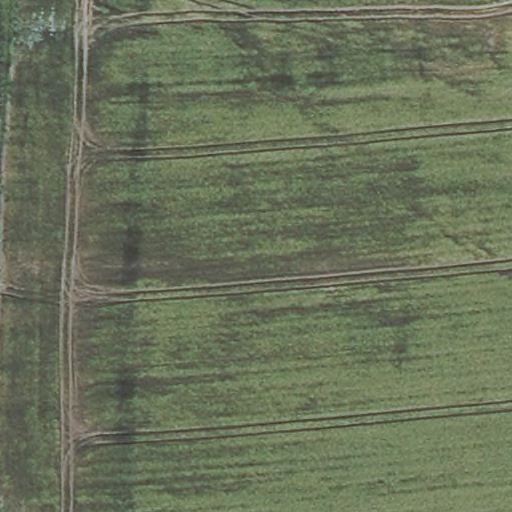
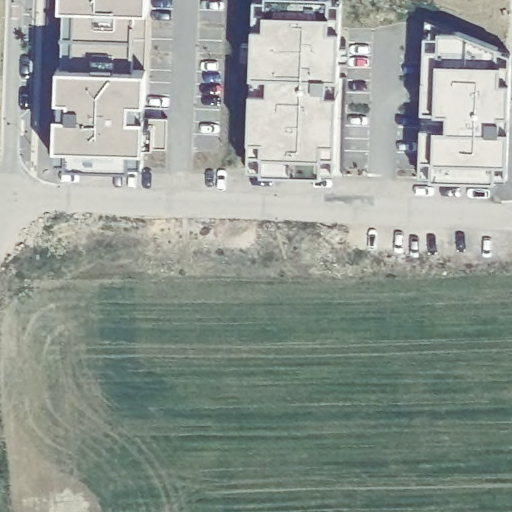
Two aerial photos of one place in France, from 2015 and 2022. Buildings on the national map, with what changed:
new [(147,71),(146,96),(167,116),(167,148),(154,139),(155,147),(144,137),(143,145),(142,164),(130,164),(130,167),(67,164),(67,160),(56,160),(56,144),(60,68),(61,6),(61,0),(149,0),(149,9),(147,71)]
new [(349,46),(349,62),(339,61),(335,175),(249,173),(255,0),(341,0),(339,45),(349,46)]
new [(426,19),(511,53),(506,182),(420,179),(426,19)]

